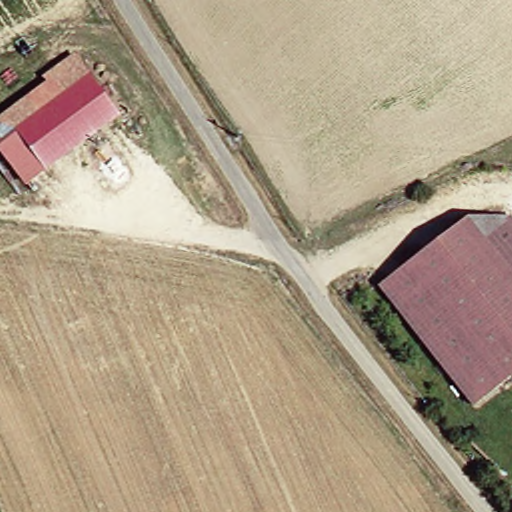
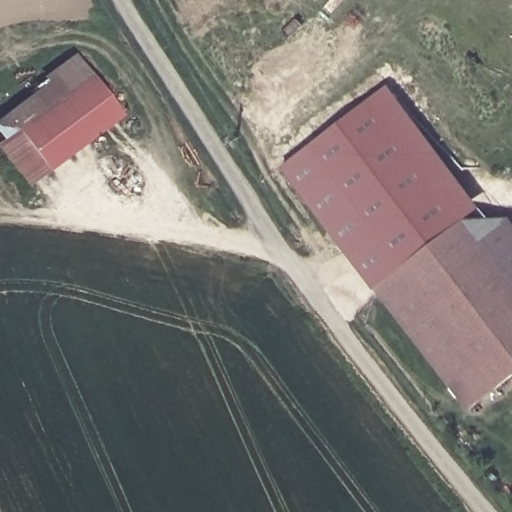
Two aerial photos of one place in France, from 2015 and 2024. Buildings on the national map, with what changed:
unchanged [(111,116),(19,186),(0,161),(0,116),(41,85),(36,78),(65,56),(111,116)]
new [(479,241),(458,217),(425,244),(375,286),(284,165),(388,83),(498,224),(479,241)]
unchanged [(375,286),(425,244),(458,217),(479,241),(512,279),(512,372),(472,407),(375,286)]
unchanged [(505,217),(512,225),(512,279),(479,241),(505,217)]

